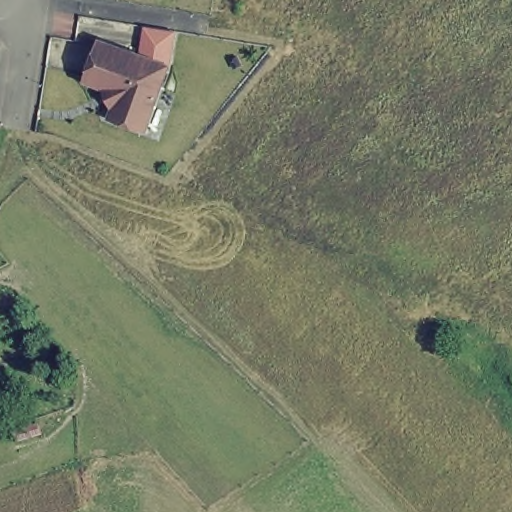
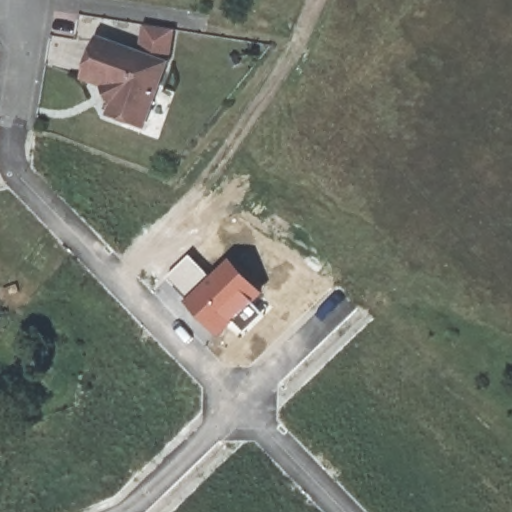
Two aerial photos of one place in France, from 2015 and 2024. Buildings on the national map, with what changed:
new [(176,31),(166,64),(137,54),(145,25),(176,31)]
unchanged [(83,79),(97,39),(166,64),(142,127),(108,115),(112,105),(102,85),(83,79)]
new [(231,258),(265,294),(220,338),(186,299),(167,279),(191,254),(211,275),(212,276),(231,258)]

